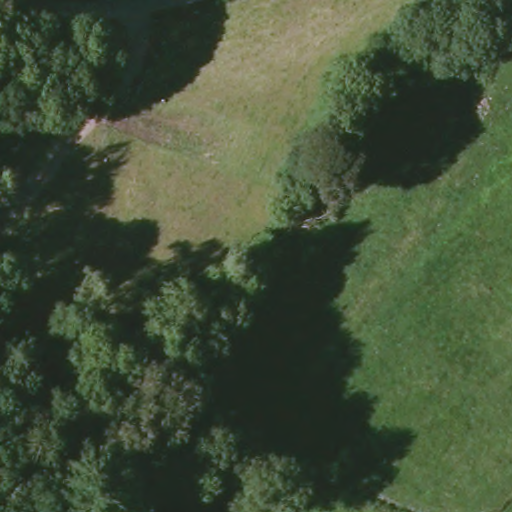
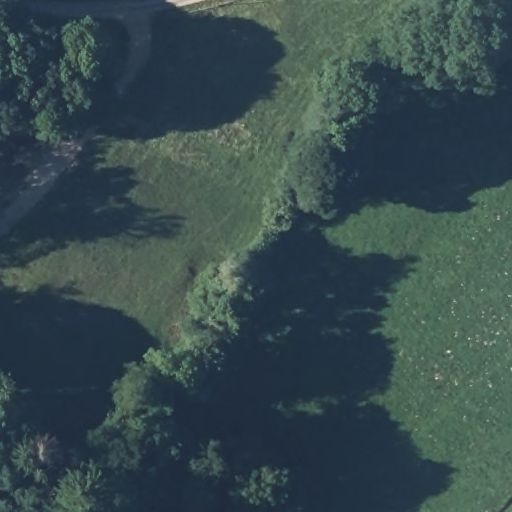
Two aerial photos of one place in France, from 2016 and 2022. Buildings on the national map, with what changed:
[]

